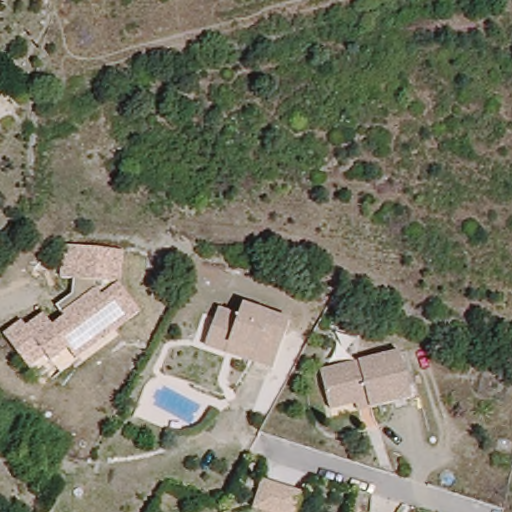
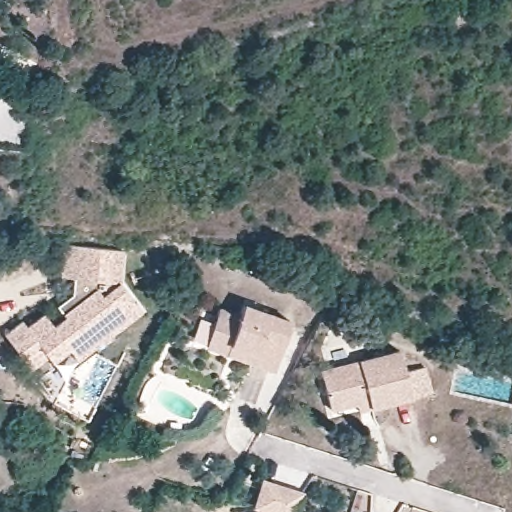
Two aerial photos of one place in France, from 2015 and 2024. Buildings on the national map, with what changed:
unchanged [(69,349),(52,361),(48,355),(31,368),(5,335),(23,321),(28,327),(45,314),(54,326),(67,317),(58,305),(74,293),(76,277),(63,276),(67,243),(125,249),(121,283),(142,311),(116,331),(78,360),(69,349)]
unchanged [(291,319),(273,366),(205,342),(218,306),(237,312),(243,301),(291,319)]
unchanged [(411,393),(330,414),(318,373),(399,350),(411,393)]
unchanged [(299,494),(294,512),(281,512),(258,504),(265,483),(299,494)]

